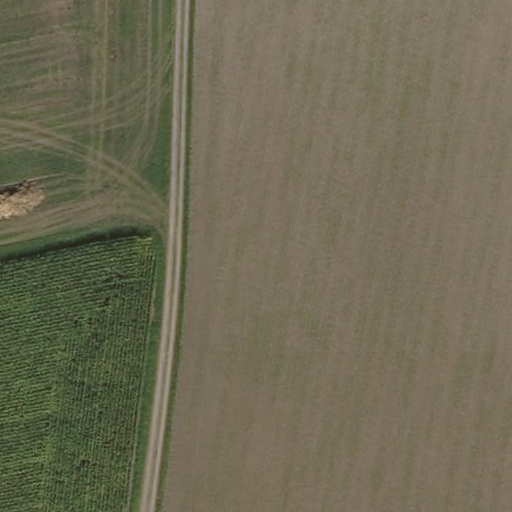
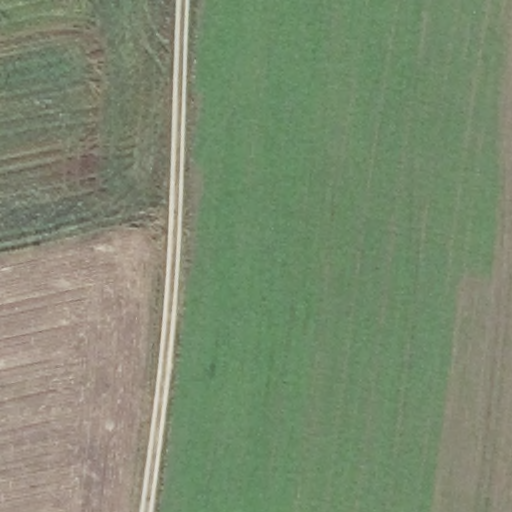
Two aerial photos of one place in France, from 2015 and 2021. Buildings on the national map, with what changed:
[]

